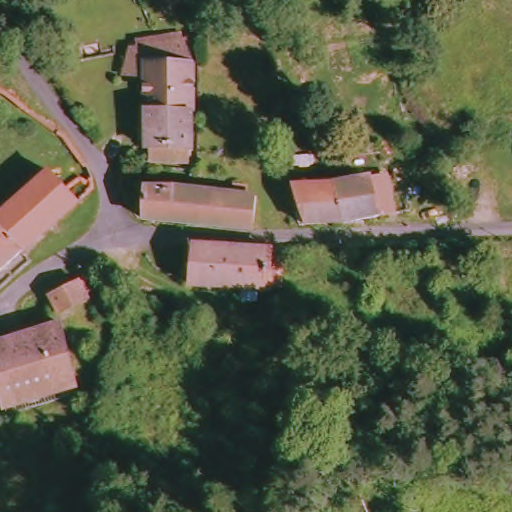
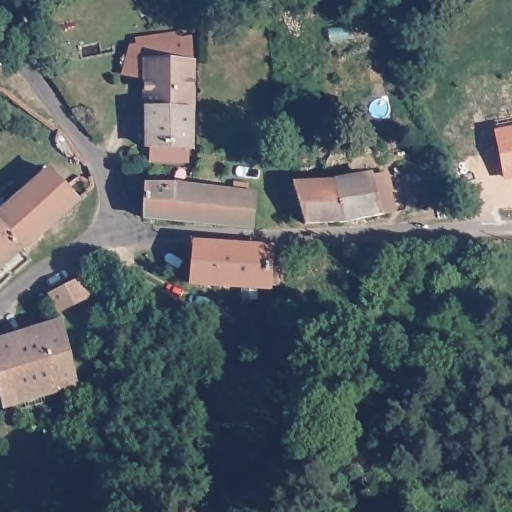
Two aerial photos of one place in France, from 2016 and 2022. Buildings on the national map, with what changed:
unchanged [(156,75),(137,78),(132,48),(158,41),(196,25),(196,145),(154,146),(156,75)]
new [(494,132),(512,128),(512,178),(503,180),(494,132)]
unchanged [(59,167),(72,182),(83,197),(30,248),(0,273),(0,220),(59,167)]
unchanged [(152,224),(153,191),(215,190),(230,189),(231,172),(249,172),(250,189),(258,188),(258,224),(231,223),(152,224)]
unchanged [(304,181),(320,179),(341,180),(381,172),(388,208),(306,219),(304,181)]
unchanged [(275,260),(285,261),(283,287),(269,286),(258,285),(258,295),(246,294),(245,284),(198,279),(198,272),(197,244),(275,245),(275,260)]
unchanged [(82,271),(88,294),(67,304),(58,284),(82,271)]
unchanged [(0,289),(0,284),(3,287),(0,289)]
unchanged [(68,315),(89,379),(6,405),(0,387),(0,339),(68,315)]

